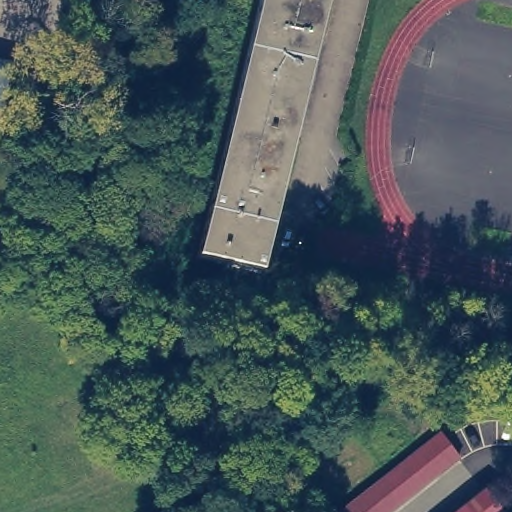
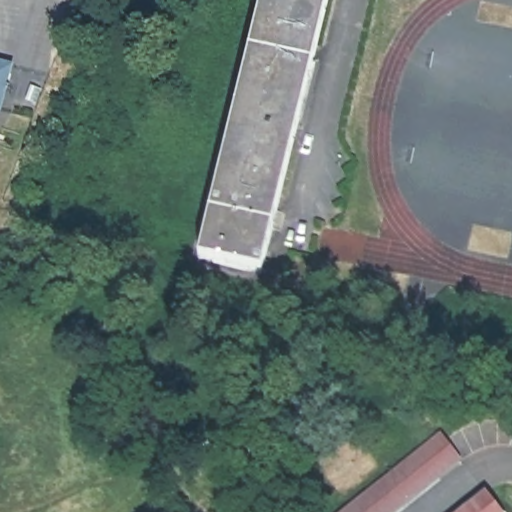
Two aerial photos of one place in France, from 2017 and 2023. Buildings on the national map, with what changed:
unchanged [(198,258),(261,0),(328,0),(262,273),(198,258)]
unchanged [(10,61),(0,100),(0,59),(10,61)]
unchanged [(460,453),(385,512),(337,512),(442,429),(460,453)]
unchanged [(486,486),(505,510),(501,512),(453,512),(486,486)]

